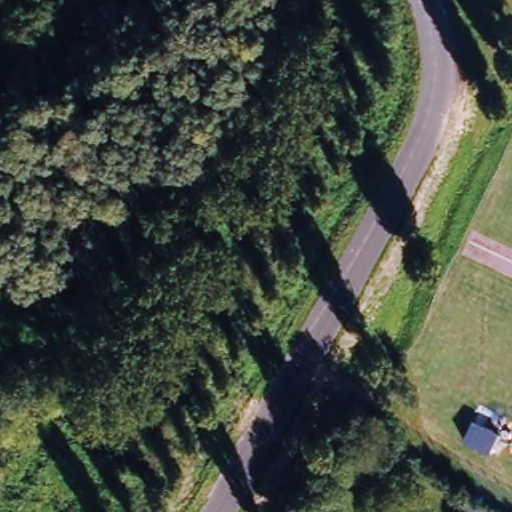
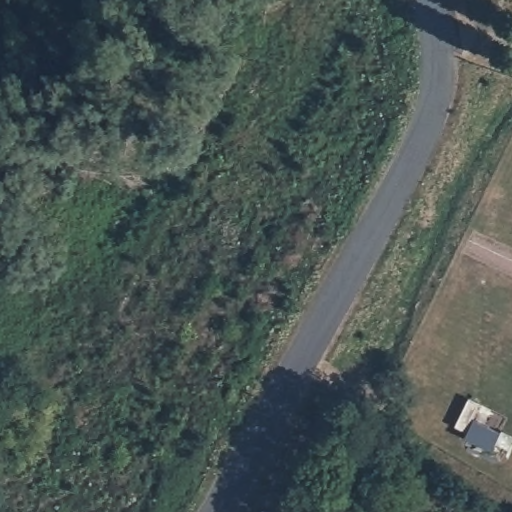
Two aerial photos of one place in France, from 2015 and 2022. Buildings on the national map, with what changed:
unchanged [(466,434),(476,416),(504,429),(494,448),(466,434)]

